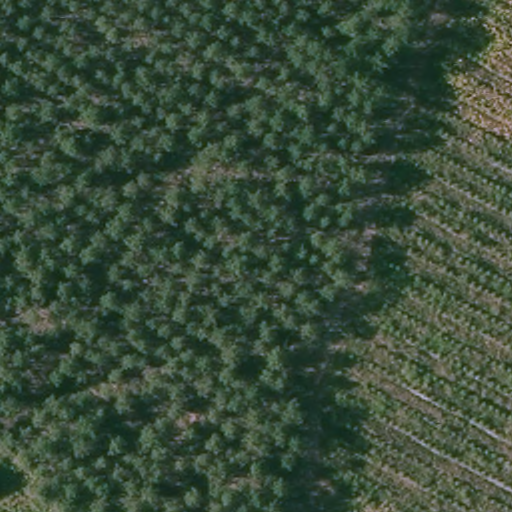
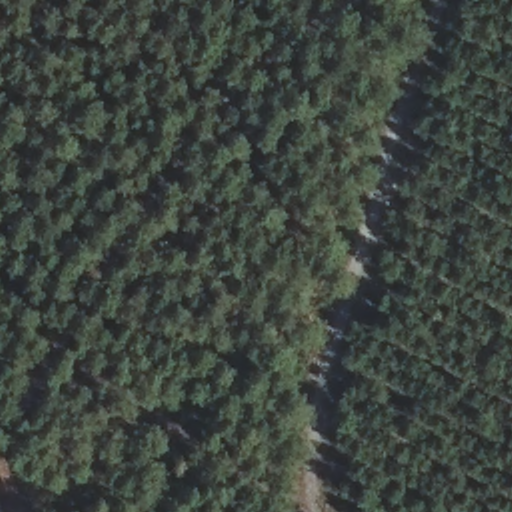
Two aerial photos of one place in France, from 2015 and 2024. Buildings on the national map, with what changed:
[]

